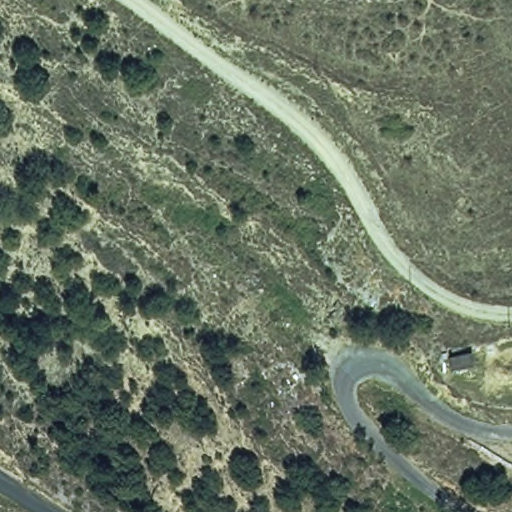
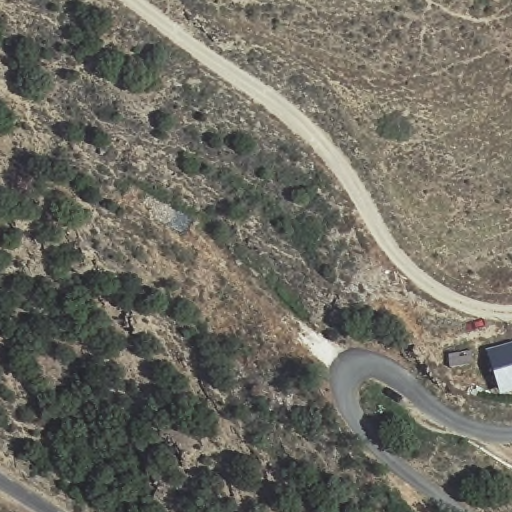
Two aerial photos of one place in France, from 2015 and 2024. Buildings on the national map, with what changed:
new [(486,358),(512,349),(512,385),(496,391),(486,358)]

